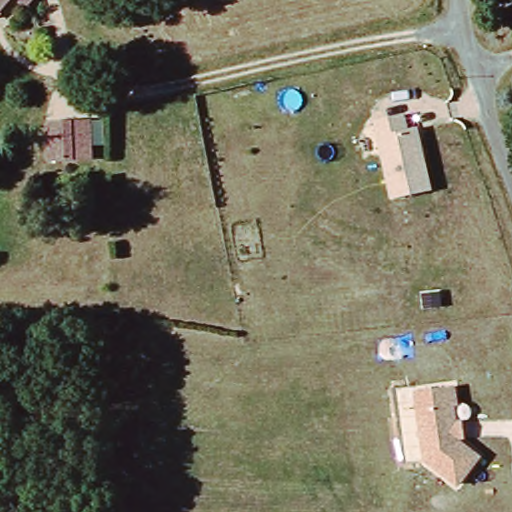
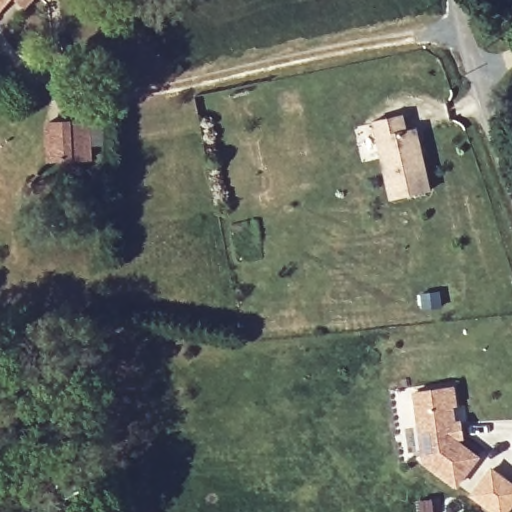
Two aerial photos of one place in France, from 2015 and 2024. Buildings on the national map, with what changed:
unchanged [(0,0),(4,0),(0,4),(0,0)]
unchanged [(26,0),(19,8),(11,0),(26,0)]
unchanged [(372,119),(403,112),(406,129),(418,128),(431,191),(390,200),(372,119)]
unchanged [(50,129),(90,126),(92,159),(52,163),(50,129)]
unchanged [(422,461),(411,392),(456,384),(460,403),(454,404),(456,419),(461,420),(464,443),(481,455),(456,486),(422,461)]
new [(511,512),(492,512),(470,496),(492,465),(512,480),(512,510),(511,512)]

